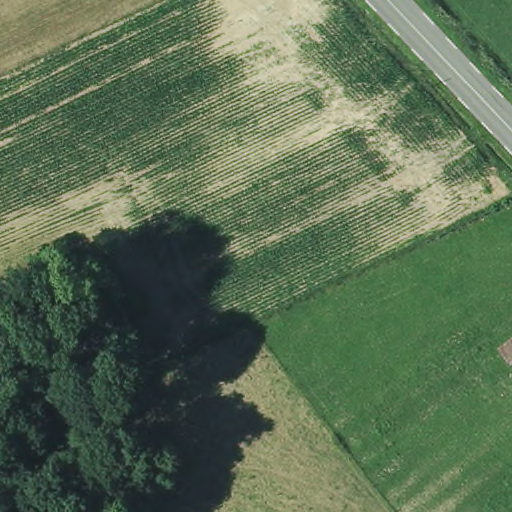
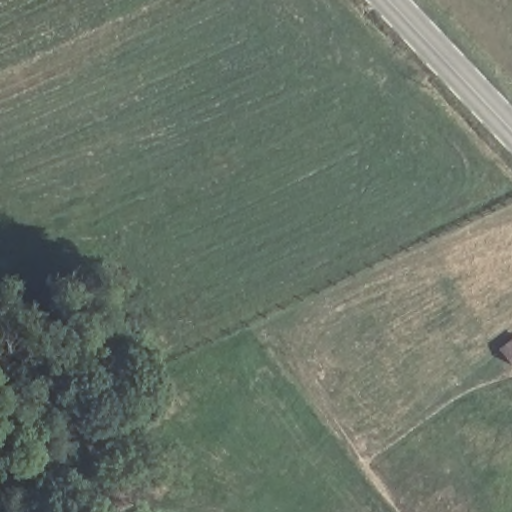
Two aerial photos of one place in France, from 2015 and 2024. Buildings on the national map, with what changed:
unchanged [(512,336),(512,365),(506,368),(491,346),(512,336)]

